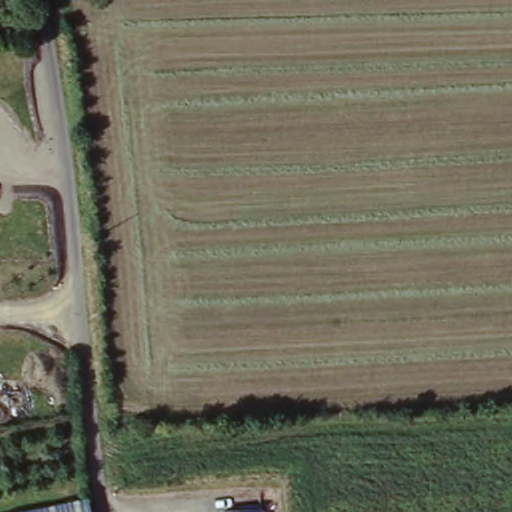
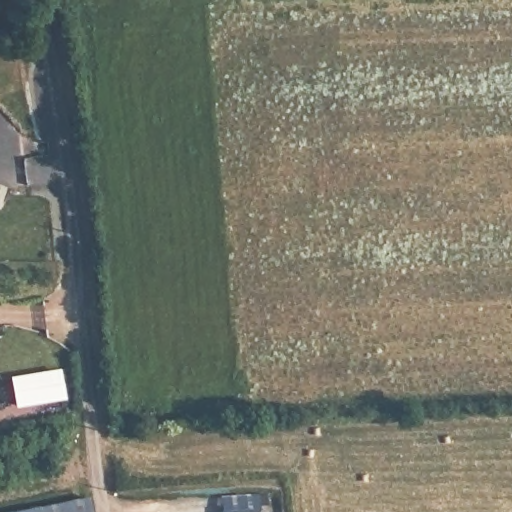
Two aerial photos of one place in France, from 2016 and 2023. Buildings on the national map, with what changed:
new [(61,368),(65,397),(16,407),(12,378),(61,368)]
unchanged [(85,500),(85,512),(4,512),(34,505),(85,500)]
unchanged [(261,512),(225,512),(225,510),(261,509),(261,512)]

